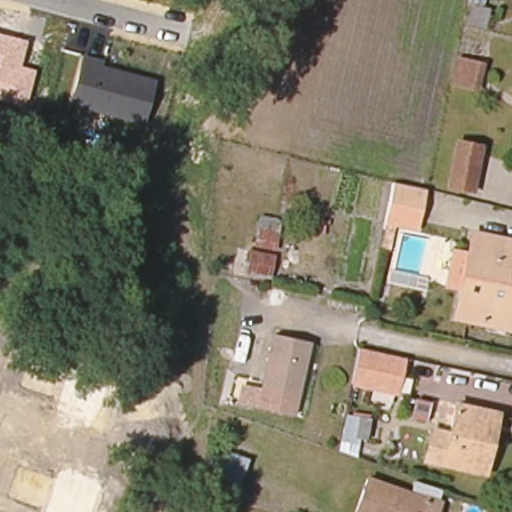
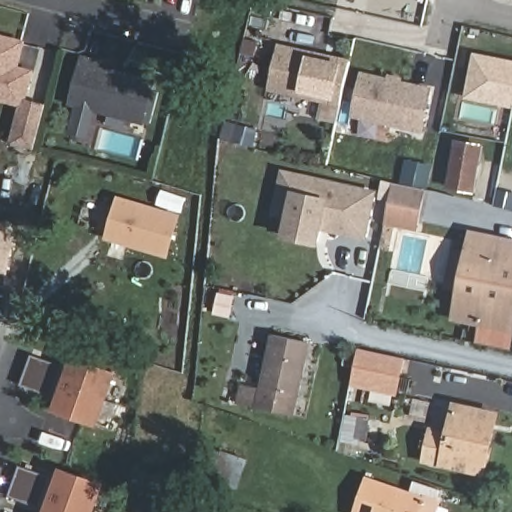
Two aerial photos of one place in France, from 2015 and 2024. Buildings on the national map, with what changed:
unchanged [(20,66),(35,70),(28,100),(26,108),(17,106),(0,102),(0,34),(27,40),(20,66)]
new [(268,91),(278,43),(351,59),(341,107),(268,91)]
new [(512,60),(512,109),(464,98),(474,52),(512,60)]
unchanged [(144,124),(69,106),(83,55),(103,60),(102,66),(156,79),(144,124)]
demolished [(454,59),(479,65),(474,90),(448,84),(454,59)]
new [(351,117),(360,71),(433,87),(422,134),(351,117)]
new [(17,106),(26,108),(28,100),(46,104),(34,150),(8,143),(17,106)]
unchanged [(485,151),(475,194),(451,189),(460,146),(485,151)]
new [(366,239),(323,229),(320,246),(282,237),(285,219),(270,216),(281,168),(377,190),(366,239)]
unchanged [(423,194),(416,230),(387,224),(394,187),(423,194)]
new [(117,199),(181,216),(171,254),(107,237),(117,199)]
new [(7,270),(0,268),(0,222),(18,227),(7,270)]
unchanged [(475,255),(481,233),(512,240),(512,325),(462,314),(467,288),(452,286),(459,252),(475,255)]
demolished [(274,256),(270,280),(230,273),(234,249),(274,256)]
new [(51,411),(56,398),(68,367),(79,334),(124,351),(97,427),(51,411)]
unchanged [(308,347),(289,412),(257,404),(273,340),(308,347)]
unchanged [(376,390),(354,386),(362,348),(404,357),(400,377),(397,395),(376,390)]
new [(31,353),(68,367),(56,398),(19,386),(31,353)]
unchanged [(446,436),(454,405),(492,415),(478,473),(422,460),(428,431),(446,436)]
unchanged [(343,412),(366,418),(362,437),(354,435),(350,456),(334,451),(343,412)]
unchanged [(243,459),(231,488),(206,478),(219,450),(243,459)]
new [(8,497),(19,465),(55,478),(44,510),(8,497)]
new [(55,478),(60,467),(105,483),(95,512),(43,512),(44,510),(55,478)]
unchanged [(362,512),(373,480),(428,499),(445,505),(442,512),(362,512)]

